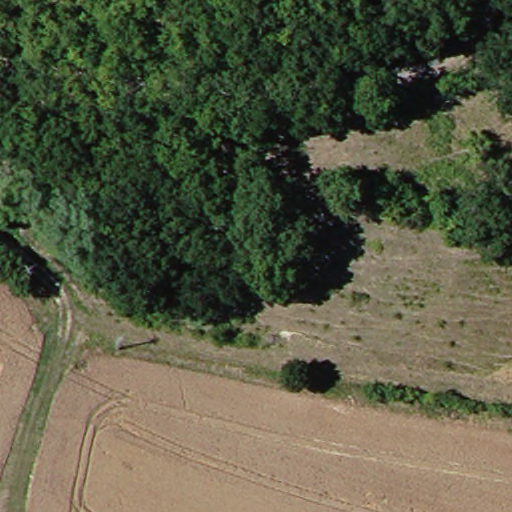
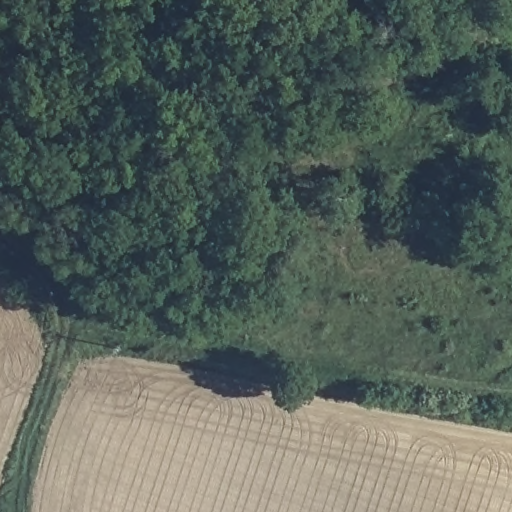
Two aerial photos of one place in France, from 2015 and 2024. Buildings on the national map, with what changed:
[]

